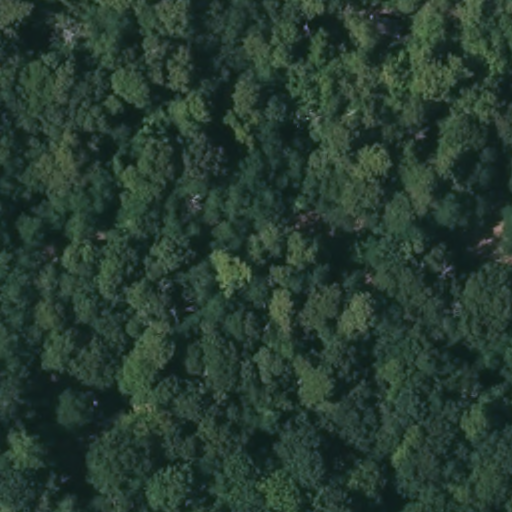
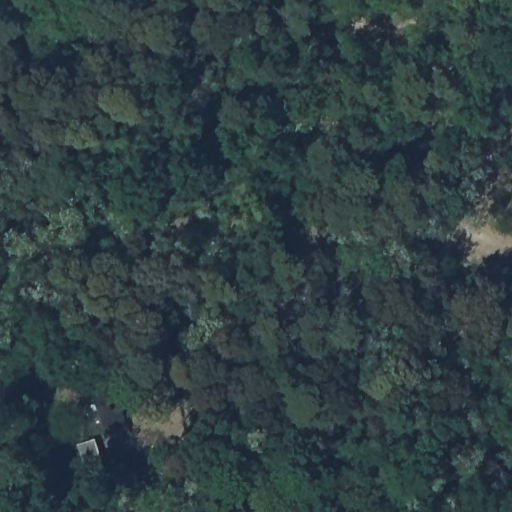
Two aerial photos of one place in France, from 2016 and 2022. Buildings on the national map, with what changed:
unchanged [(92,431),(87,413),(106,407),(109,415),(119,412),(125,431),(106,437),(103,428),(92,431)]
unchanged [(90,486),(86,468),(81,448),(96,443),(102,466),(107,481),(90,486)]

